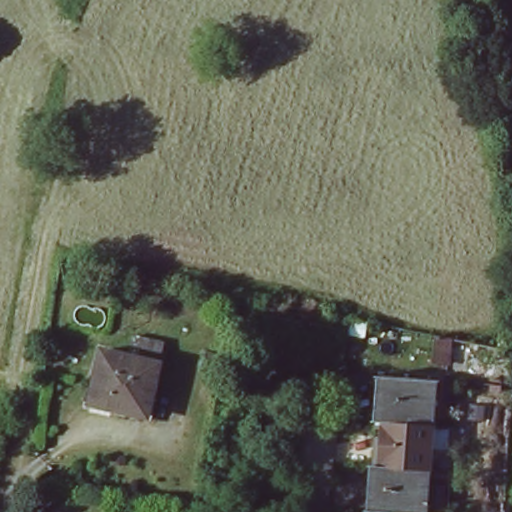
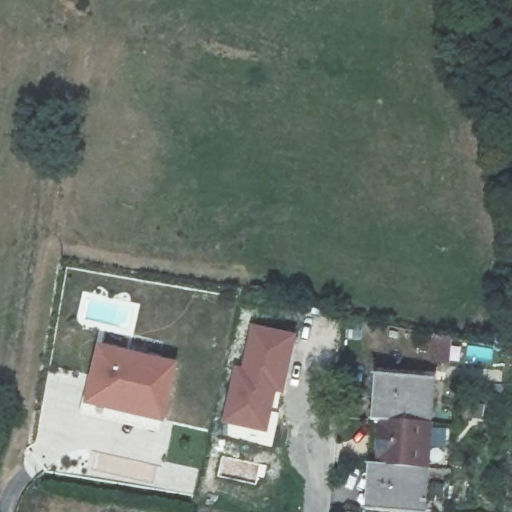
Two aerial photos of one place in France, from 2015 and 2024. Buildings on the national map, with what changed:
new [(298,335),(284,396),(277,395),(266,434),(221,424),(233,367),(241,370),(251,327),(298,335)]
unchanged [(91,407),(102,351),(161,365),(150,419),(91,407)]
unchanged [(376,418),(380,374),(431,379),(427,423),(376,418)]
unchanged [(422,471),(372,466),(376,418),(427,423),(422,471)]
unchanged [(407,512),(367,508),(372,466),(422,471),(418,512),(407,512)]

